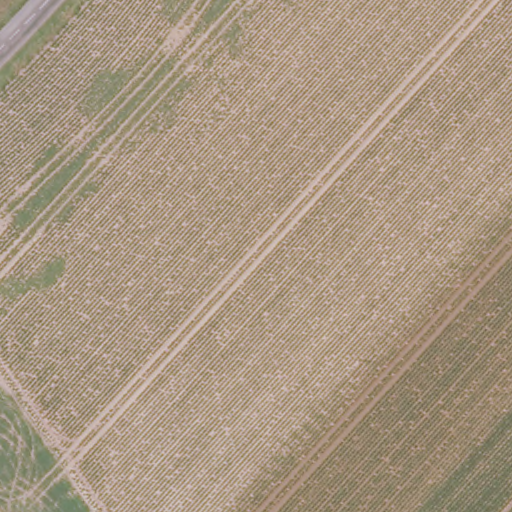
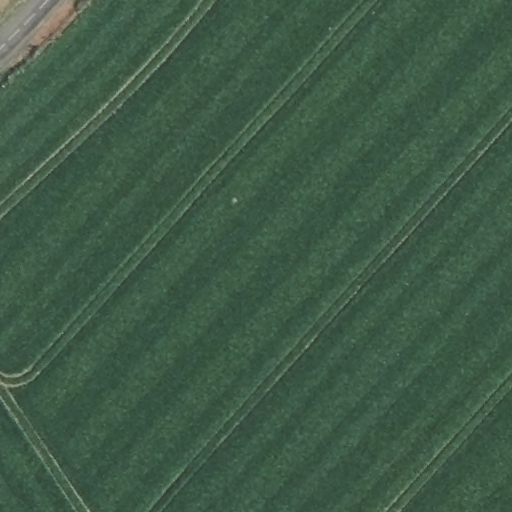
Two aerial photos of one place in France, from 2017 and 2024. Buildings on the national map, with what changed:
[]

